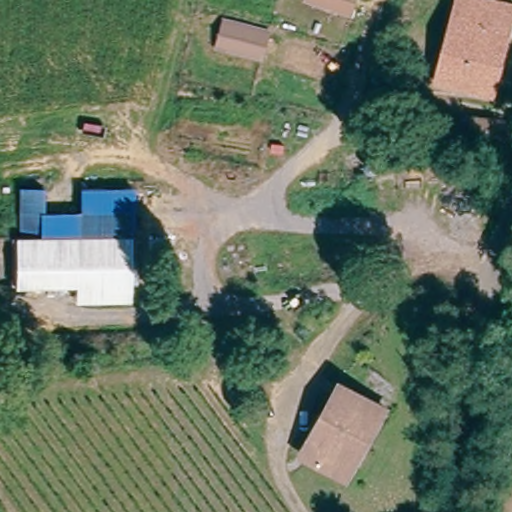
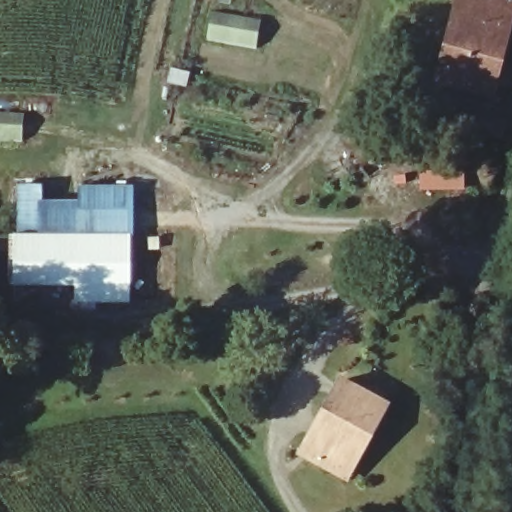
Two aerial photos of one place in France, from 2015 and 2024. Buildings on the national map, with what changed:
unchanged [(352,14),(309,0),(357,0),(352,14)]
unchanged [(500,79),(446,67),(461,0),(512,0),(512,23),(500,79)]
unchanged [(330,48),(321,82),(274,68),(283,35),(330,48)]
unchanged [(497,128),(457,120),(460,100),(501,108),(497,128)]
new [(0,111),(24,112),(24,139),(0,139),(0,111)]
unchanged [(17,184),(44,182),(44,208),(80,209),(80,185),(131,185),(132,232),(15,236),(17,184)]
unchanged [(77,283),(16,285),(15,236),(132,232),(135,299),(101,300),(78,301),(77,283)]
unchanged [(336,371),(391,398),(350,483),(299,453),(336,371)]

